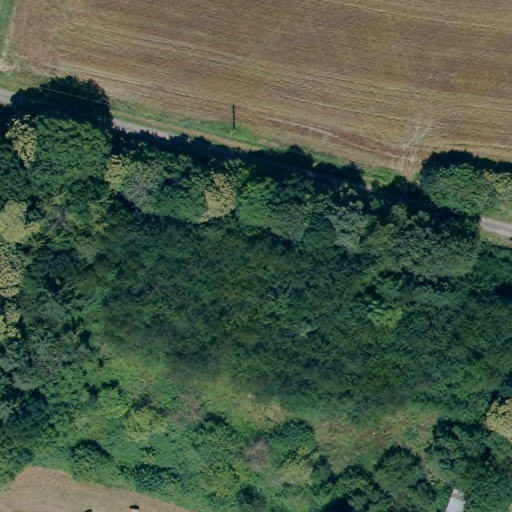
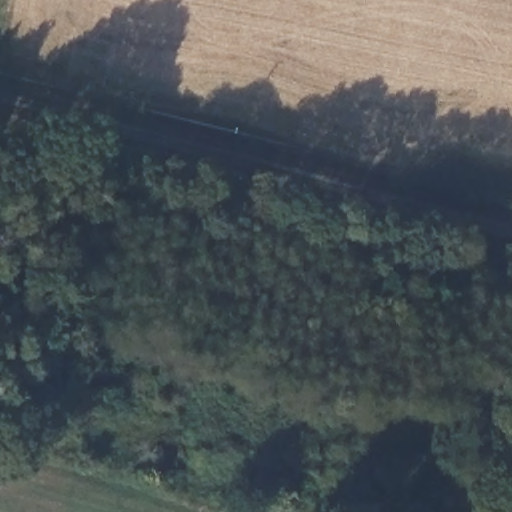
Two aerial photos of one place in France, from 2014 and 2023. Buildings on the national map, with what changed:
unchanged [(473,512),(456,512),(447,510),(461,466),(484,477),(473,512)]

